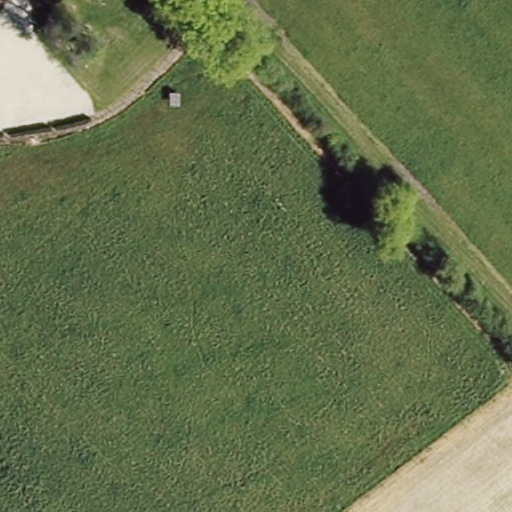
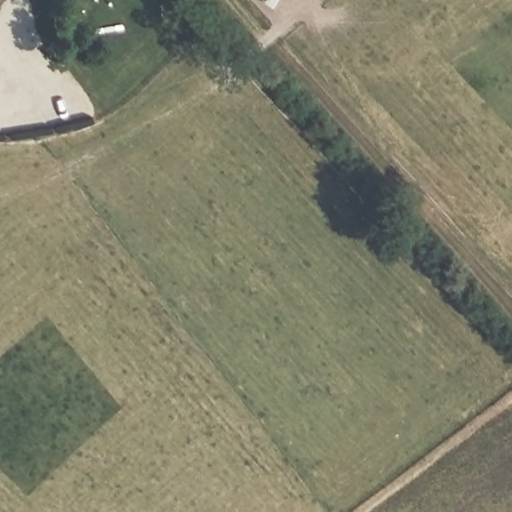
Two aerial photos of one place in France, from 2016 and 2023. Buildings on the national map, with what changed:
unchanged [(0,2),(0,0),(2,0),(0,2)]

